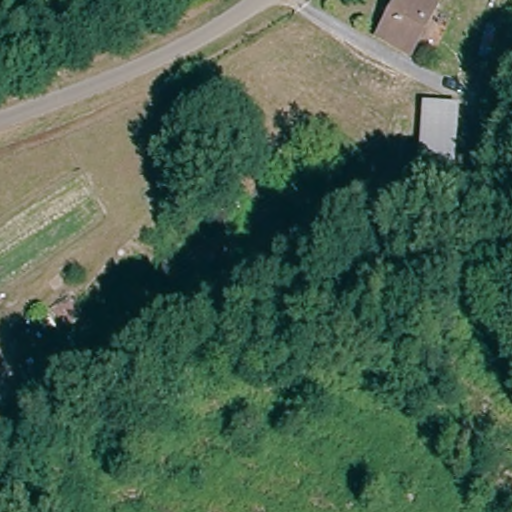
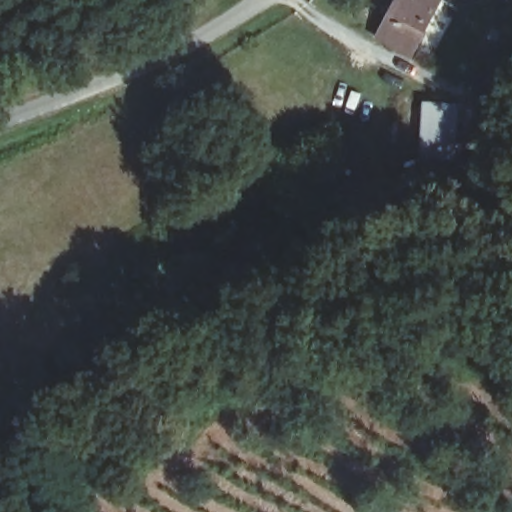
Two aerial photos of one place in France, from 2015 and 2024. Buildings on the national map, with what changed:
unchanged [(435,1),(407,60),(380,45),(377,44),(397,0),(399,0),(405,3),(407,0),(432,0),(435,1)]
unchanged [(420,157),(424,104),(455,107),(451,160),(420,157)]

